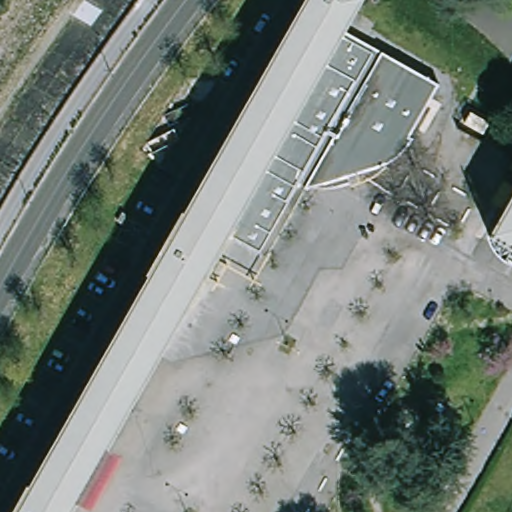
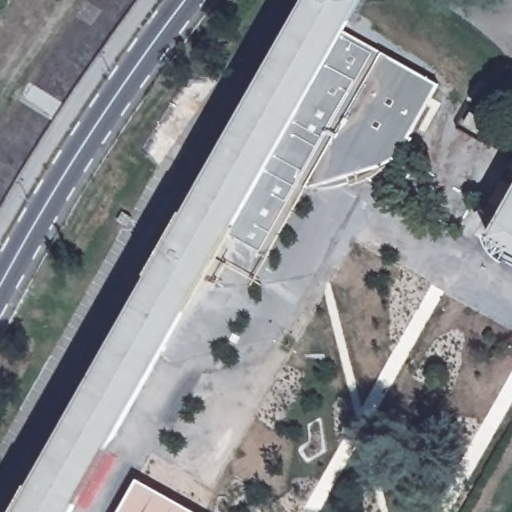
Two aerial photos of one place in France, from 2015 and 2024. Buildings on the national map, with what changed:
unchanged [(357,8),(345,29),(229,232),(69,512),(15,512),(307,0),(361,0),(357,8)]
unchanged [(442,84),(411,136),(415,139),(408,150),(404,154),(398,159),(391,164),(385,167),(379,170),(372,171),(308,184),(268,255),(229,232),(345,29),(442,84)]
unchanged [(512,238),(492,227),(507,203),(498,198),(512,174),(512,238)]
new [(197,512),(118,512),(138,478),(197,512)]

